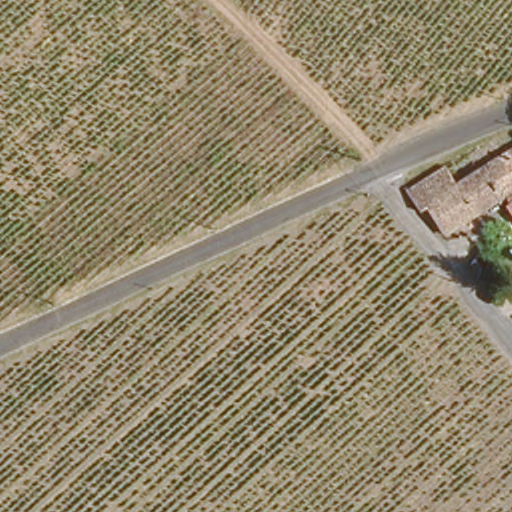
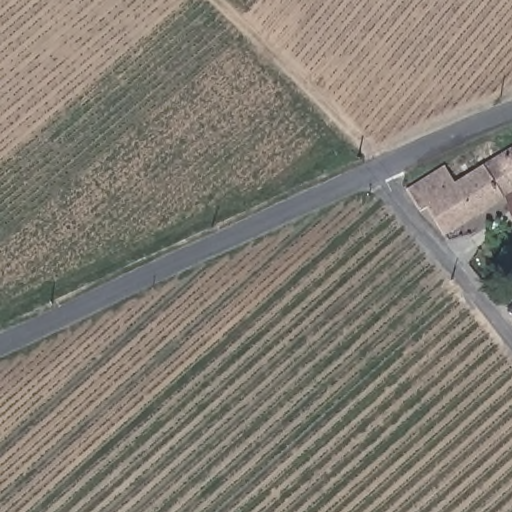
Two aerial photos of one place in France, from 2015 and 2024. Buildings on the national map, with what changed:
unchanged [(443,231),(427,205),(457,187),(486,171),(512,156),(512,193),(443,231)]
unchanged [(427,205),(420,210),(405,188),(443,164),(445,167),(457,187),(427,205)]
unchanged [(512,206),(512,211),(510,208),(512,206)]

